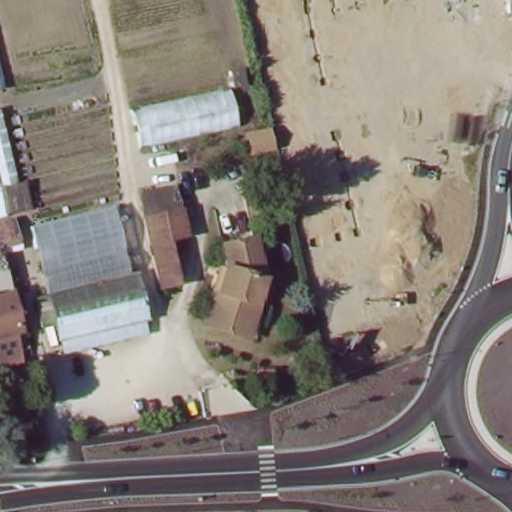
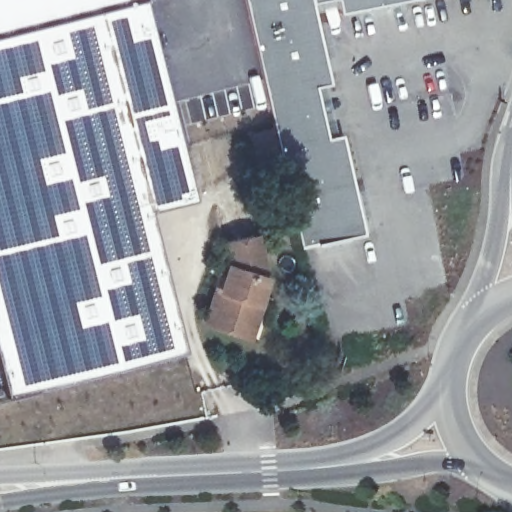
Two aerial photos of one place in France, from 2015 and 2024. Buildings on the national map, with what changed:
new [(0,32),(0,0),(122,0),(97,7),(0,32)]
new [(122,0),(142,0),(175,130),(191,197),(145,208),(181,350),(129,363),(18,387),(0,318),(0,32),(97,7),(122,0)]
unchanged [(311,6),(330,86),(315,90),(321,115),(274,126),(245,0),(308,0),(310,6),(311,6)]
new [(338,16),(335,1),(311,6),(310,6),(308,0),(410,0),(411,0),(338,16)]
demolished [(19,90),(0,95),(0,23),(19,90)]
demolished [(246,129),(145,152),(138,118),(236,92),(246,129)]
new [(321,115),(327,140),(342,137),(365,236),(304,251),(274,126),(321,115)]
demolished [(177,252),(185,296),(163,300),(145,214),(189,205),(198,248),(177,252)]
demolished [(13,224),(15,230),(18,247),(4,250),(13,296),(20,335),(0,339),(0,227),(13,224)]
unchanged [(257,339),(212,325),(216,313),(222,289),(227,291),(237,261),(231,248),(262,240),(272,271),(267,280),(271,281),(264,302),(269,303),(257,339)]

